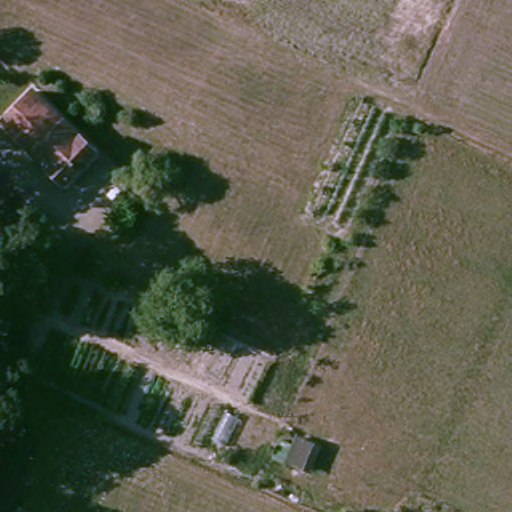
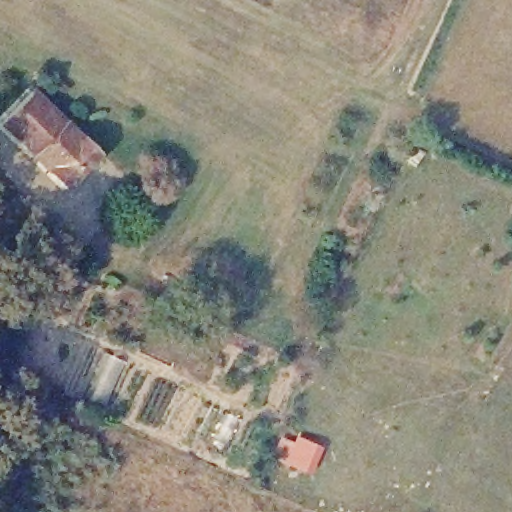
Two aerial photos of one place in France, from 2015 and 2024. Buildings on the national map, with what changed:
unchanged [(33,81),(104,147),(73,182),(2,111),(33,81)]

